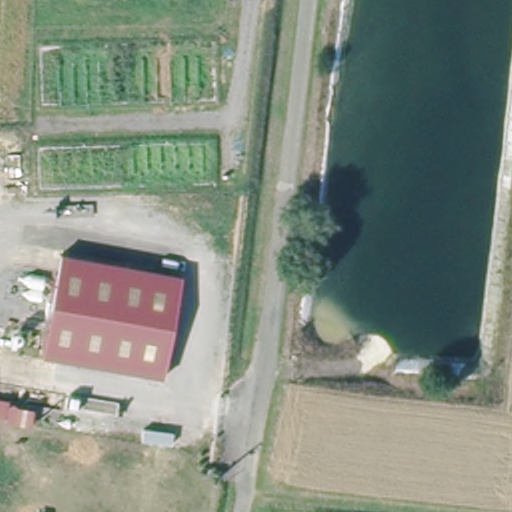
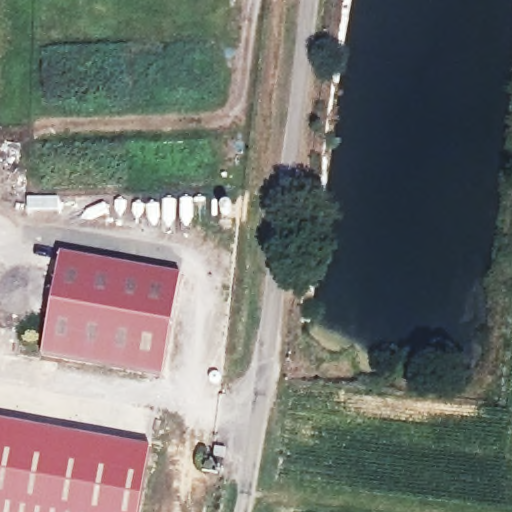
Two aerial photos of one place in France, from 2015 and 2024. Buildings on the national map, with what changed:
unchanged [(166,378),(44,358),(60,257),(182,277),(166,378)]
new [(152,446),(140,512),(0,512),(0,420),(152,446)]

